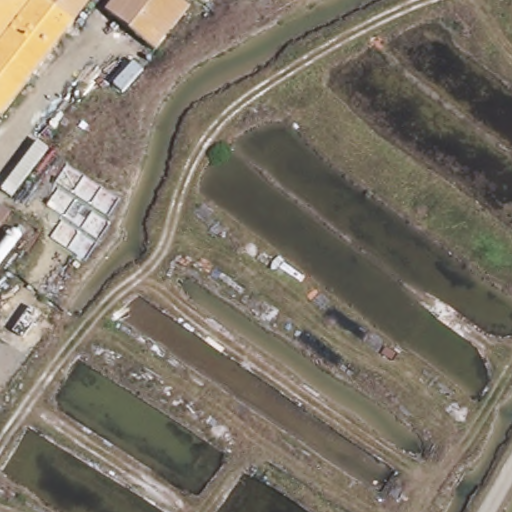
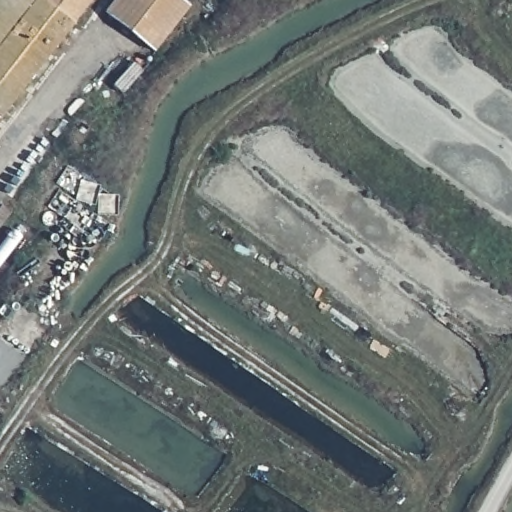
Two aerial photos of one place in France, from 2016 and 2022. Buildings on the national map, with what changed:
unchanged [(66,0),(68,5),(75,23),(0,120),(0,0),(66,0)]
unchanged [(86,10),(75,23),(68,5),(66,0),(82,0),(84,4),(86,10)]
unchanged [(84,4),(82,0),(94,0),(86,10),(84,4)]
unchanged [(106,18),(120,0),(183,0),(191,6),(156,55),(106,18)]

